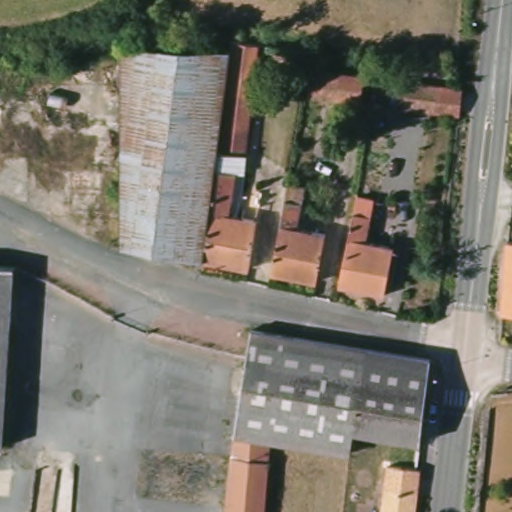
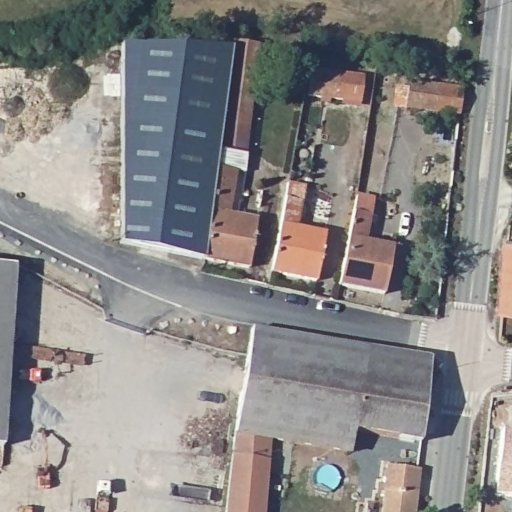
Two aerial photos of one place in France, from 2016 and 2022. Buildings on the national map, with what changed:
unchanged [(232,97),(260,100),(256,131),(229,129),(227,153),(225,173),(211,263),(127,248),(127,222),(128,61),(128,50),(235,42),(235,51),(232,97)]
unchanged [(348,71),(347,77),(360,79),(358,99),(312,93),(315,67),(348,71)]
unchanged [(466,118),(452,116),(401,109),(403,88),(416,90),(417,85),(457,90),(469,92),(466,118)]
unchanged [(242,176),(238,217),(265,222),(256,272),(211,263),(225,173),(242,176)]
unchanged [(308,189),(301,230),(328,235),(319,285),(273,276),(290,185),(308,189)]
unchanged [(376,203),(368,244),(395,250),(386,298),(341,290),(358,200),(376,203)]
unchanged [(509,246),(512,246),(512,318),(504,318),(509,246)]
unchanged [(17,265),(5,451),(0,450),(0,263),(17,265)]
unchanged [(274,445),(272,445),(262,512),(225,512),(255,331),(391,355),(405,357),(430,362),(420,443),(363,434),(357,434),(354,458),(314,451),(274,445)]
unchanged [(422,468),(417,512),(384,512),(390,463),(422,468)]

